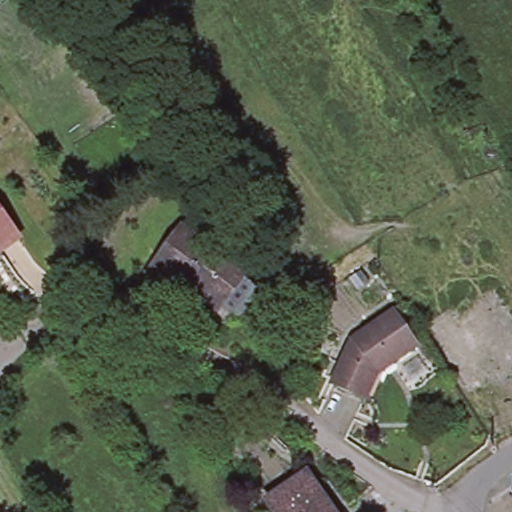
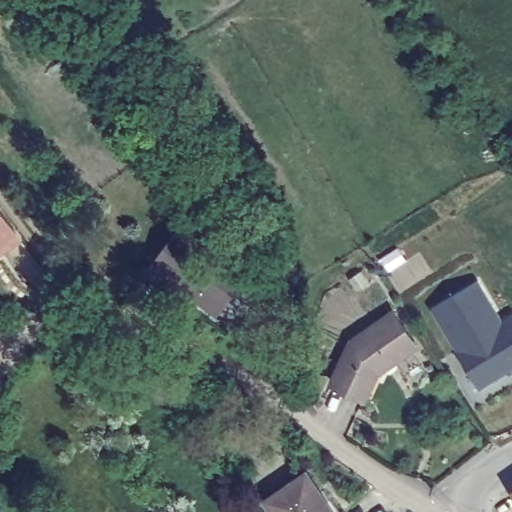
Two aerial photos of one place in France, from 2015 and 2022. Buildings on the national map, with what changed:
unchanged [(10,247),(0,253),(0,213),(19,240),(10,247)]
unchanged [(218,314),(204,300),(202,302),(175,273),(170,279),(142,252),(180,215),(235,270),(232,272),(247,286),(218,314)]
new [(431,308),(480,280),(502,318),(512,312),(512,370),(481,389),(431,308)]
unchanged [(357,393),(323,377),(341,335),(381,307),(406,340),(372,366),(370,365),(357,393)]
unchanged [(273,512),(262,495),(303,468),(322,497),(320,498),(329,512),(273,512)]

